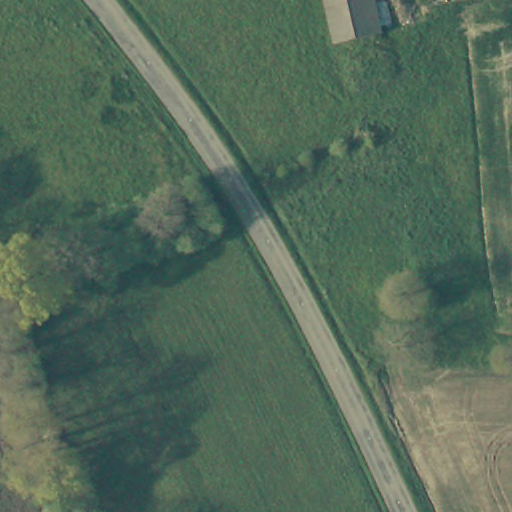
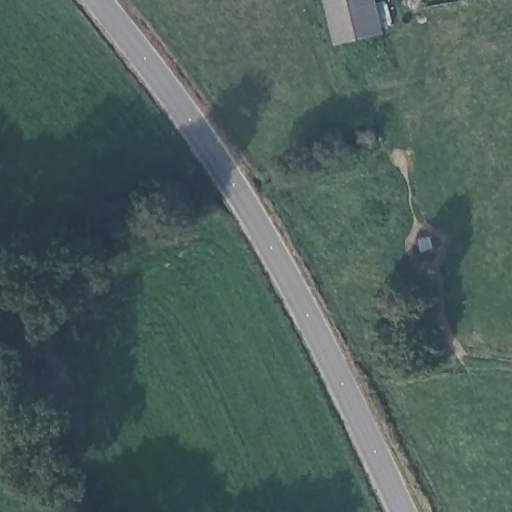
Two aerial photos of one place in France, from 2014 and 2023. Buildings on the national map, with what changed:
unchanged [(338,45),(328,0),(381,0),(388,32),(338,45)]

